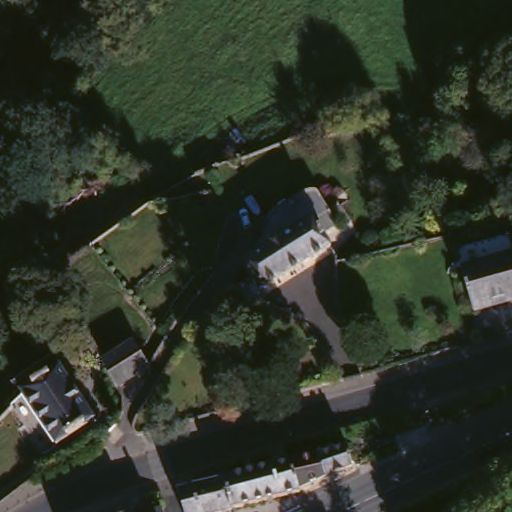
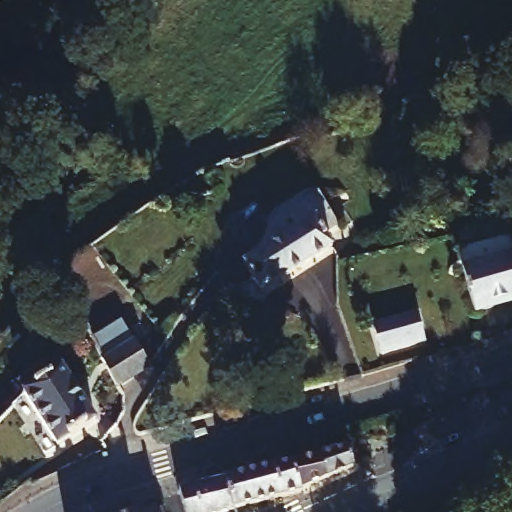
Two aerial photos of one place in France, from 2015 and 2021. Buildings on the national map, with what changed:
unchanged [(329,251),(256,292),(239,263),(277,242),(263,219),(270,210),(309,191),(319,193),(331,215),(314,225),(329,251)]
unchanged [(512,304),(471,315),(460,274),(455,255),(508,241),(512,254),(512,304)]
new [(427,338),(383,352),(376,328),(374,324),(399,317),(419,311),(427,338)]
unchanged [(84,331),(76,337),(75,335),(71,328),(80,323),(84,331)]
unchanged [(144,357),(146,361),(113,380),(102,362),(98,354),(98,353),(132,335),(144,357)]
unchanged [(88,405),(82,409),(94,427),(99,435),(64,451),(15,381),(53,354),(88,405)]
unchanged [(347,443),(351,475),(308,486),(307,492),(231,512),(183,512),(177,483),(347,443)]
unchanged [(147,504),(150,512),(125,512),(147,504)]

